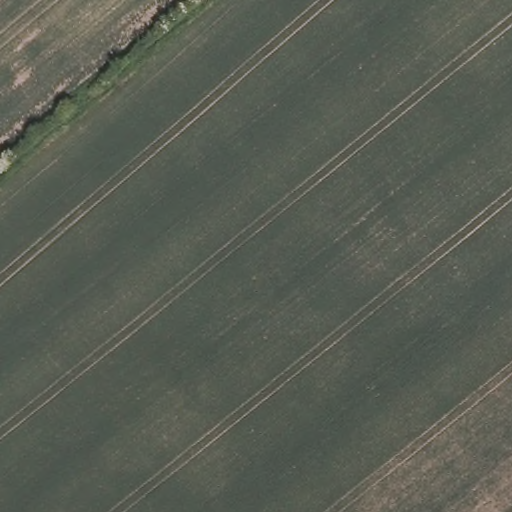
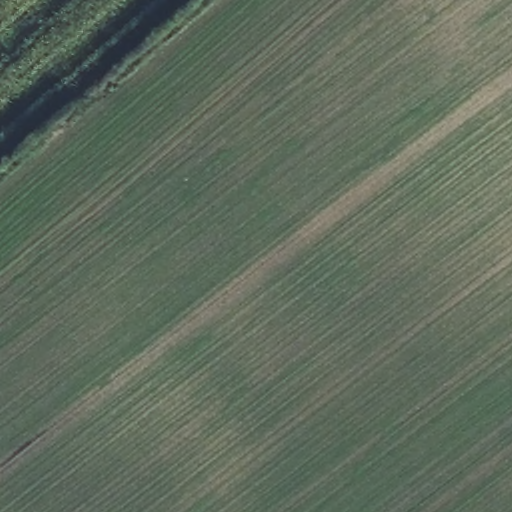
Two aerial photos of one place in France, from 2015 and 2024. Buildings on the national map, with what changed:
[]

